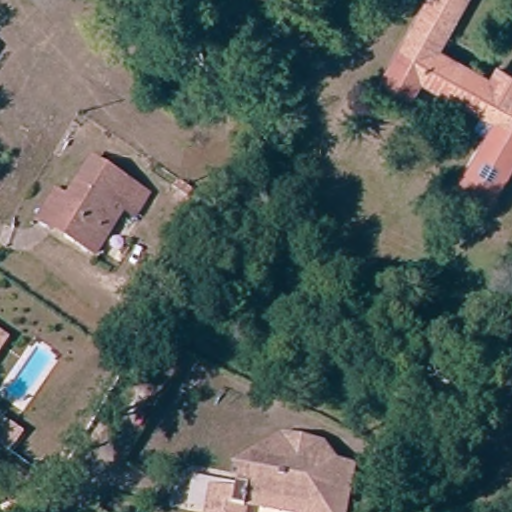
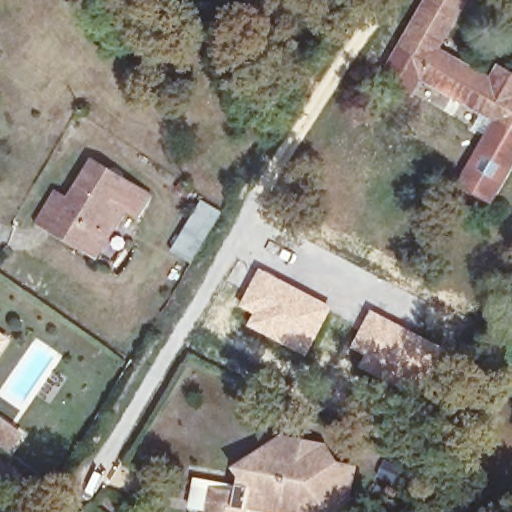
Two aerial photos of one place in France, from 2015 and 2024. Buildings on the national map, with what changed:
unchanged [(428,73),(414,94),(386,77),(433,0),(468,0),(440,46),(497,80),(503,70),(512,75),(512,124),(486,108),(428,73)]
unchanged [(492,132),(477,123),(486,108),(512,124),(512,172),(495,199),(463,180),(492,132)]
unchanged [(63,230),(68,223),(52,213),(90,154),(143,189),(131,208),(122,203),(92,249),(63,230)]
new [(259,268),(332,307),(306,357),(247,325),(252,313),(238,305),(259,268)]
new [(370,309),(446,348),(419,398),(357,366),(363,355),(350,348),(370,309)]
unchanged [(9,337),(0,351),(0,331),(9,337)]
unchanged [(190,504),(196,476),(215,480),(237,483),(242,457),(251,451),(285,429),(319,435),(320,439),(332,456),(355,457),(351,481),(348,499),(333,509),(333,512),(311,512),(313,499),(301,496),(299,498),(298,509),(262,502),(264,493),(266,480),(258,479),(256,490),(249,490),(246,507),(245,512),(209,512),(210,508),(190,504)]
new [(385,457),(405,468),(393,489),(373,478),(385,457)]

